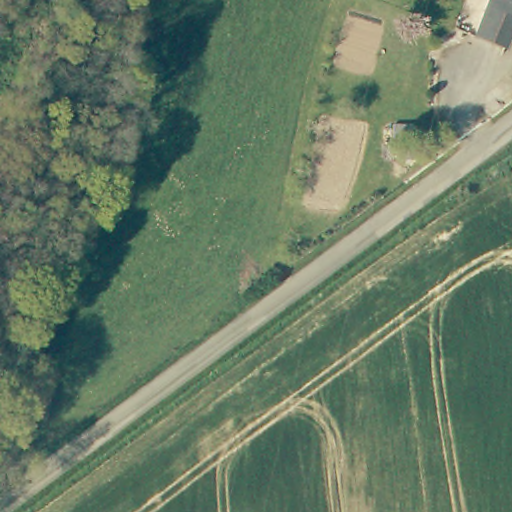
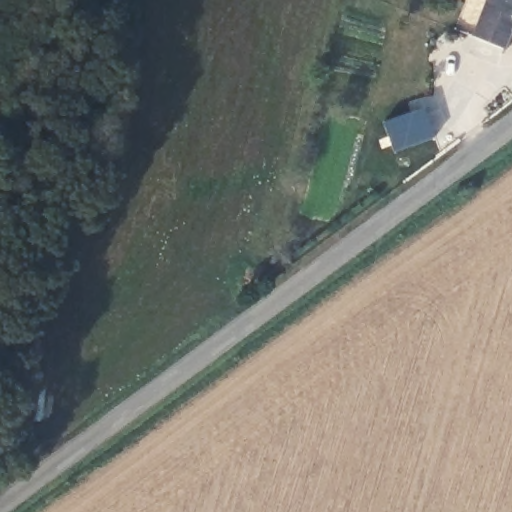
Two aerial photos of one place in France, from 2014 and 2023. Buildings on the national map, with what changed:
unchanged [(503,51),(470,36),(487,0),(512,0),(512,37),(510,36),(503,51)]
new [(394,152),(384,121),(425,105),(435,137),(394,152)]

